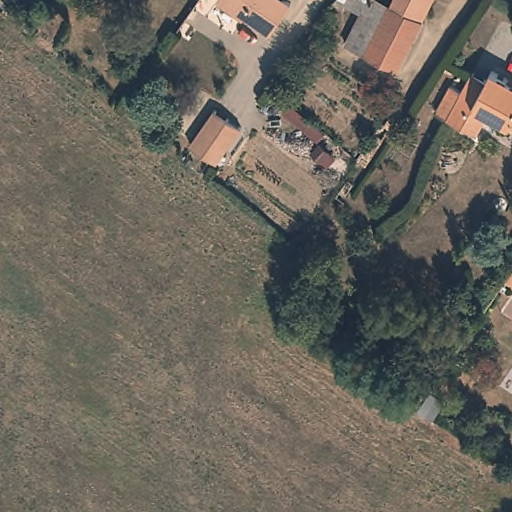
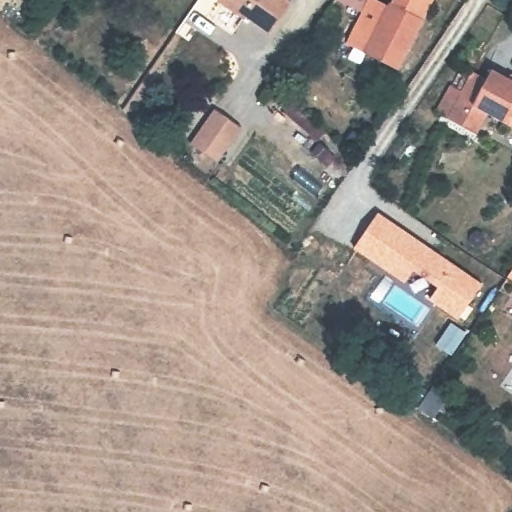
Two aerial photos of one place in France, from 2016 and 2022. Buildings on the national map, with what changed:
unchanged [(270,29),(245,11),(242,14),(223,0),(290,0),(270,29)]
unchanged [(390,2),(391,0),(392,0),(422,16),(397,64),(346,39),(361,8),(346,0),(386,0),(390,2)]
unchanged [(422,16),(392,0),(431,0),(422,16)]
unchanged [(447,118),(436,112),(451,86),(462,91),(472,71),(487,79),(492,70),(512,81),(512,127),(488,113),(476,135),(447,119),(447,118)]
unchanged [(241,128),(217,163),(190,144),(215,109),(241,128)]
new [(378,212),(482,284),(457,322),(428,302),(437,288),(412,271),(404,284),(353,249),(378,212)]
unchanged [(444,399),(431,418),(417,409),(430,390),(444,399)]

